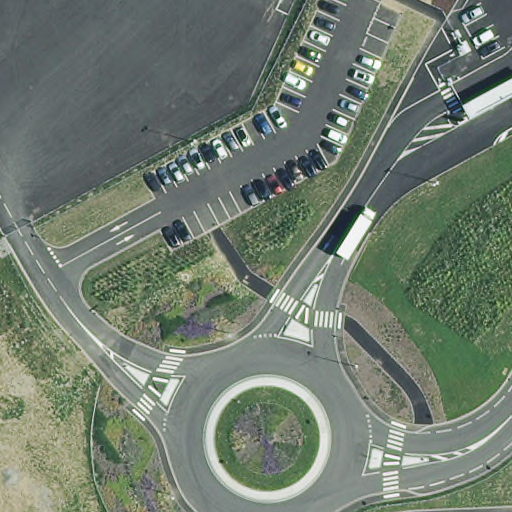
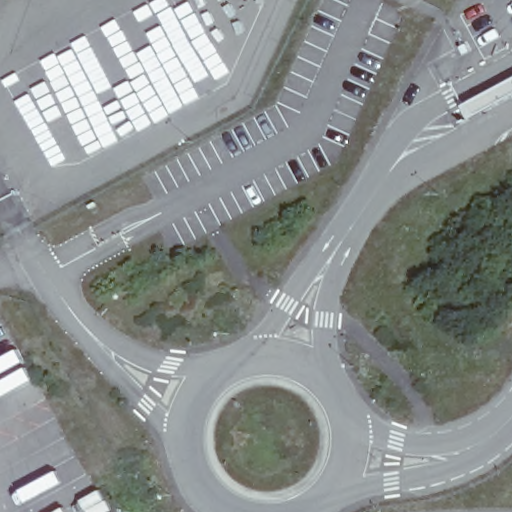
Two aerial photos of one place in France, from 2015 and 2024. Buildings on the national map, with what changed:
unchanged [(462,105),(512,78),(512,97),(470,120),(462,105)]

